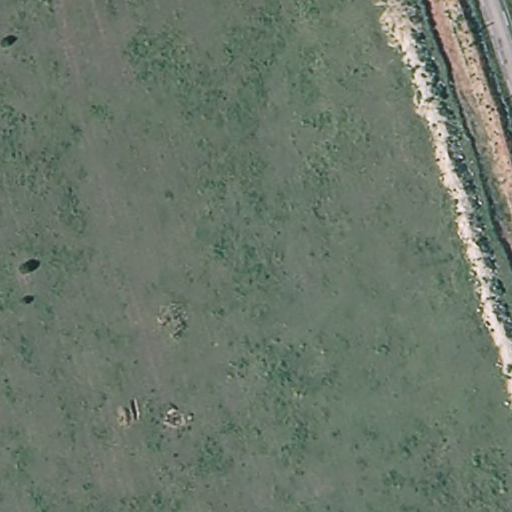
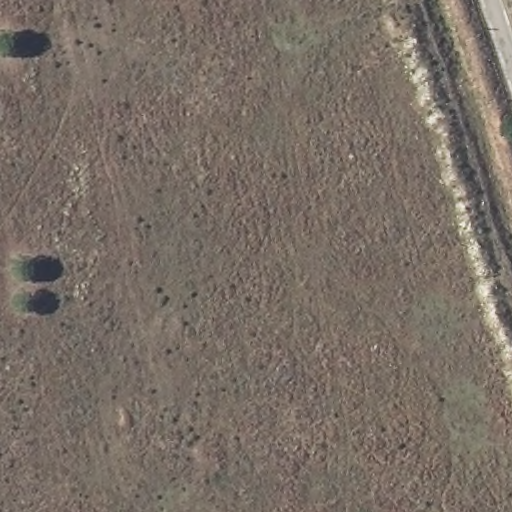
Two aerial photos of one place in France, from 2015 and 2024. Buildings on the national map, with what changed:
[]

